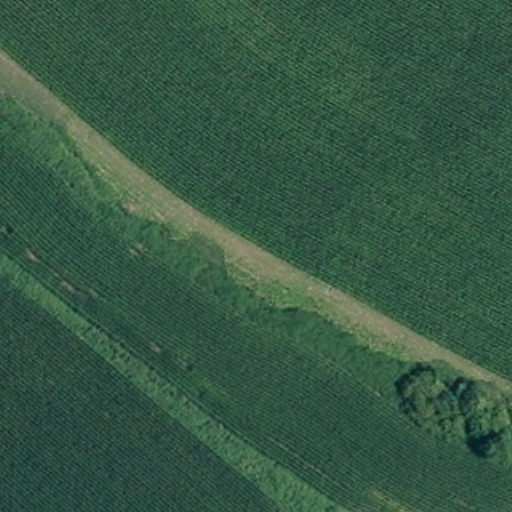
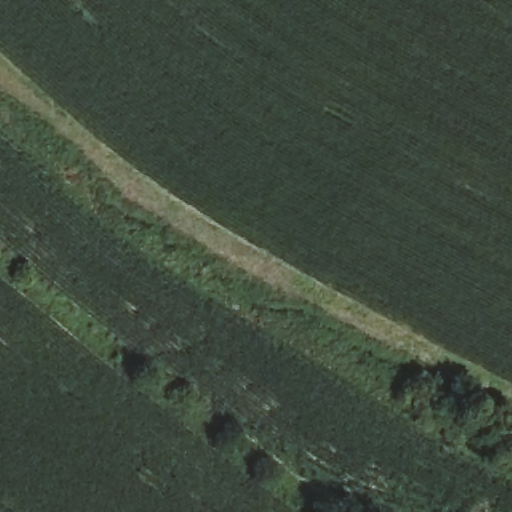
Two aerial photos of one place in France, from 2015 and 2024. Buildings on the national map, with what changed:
[]

